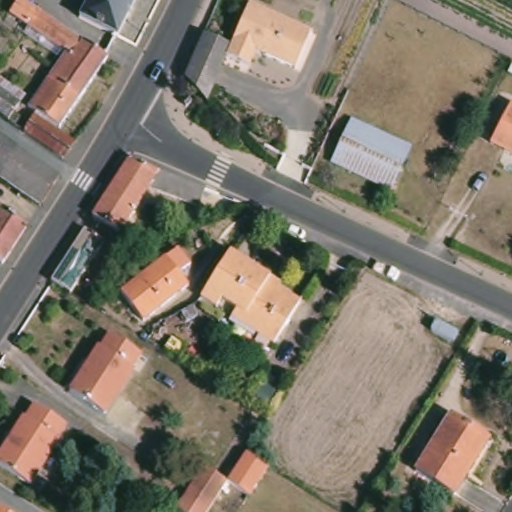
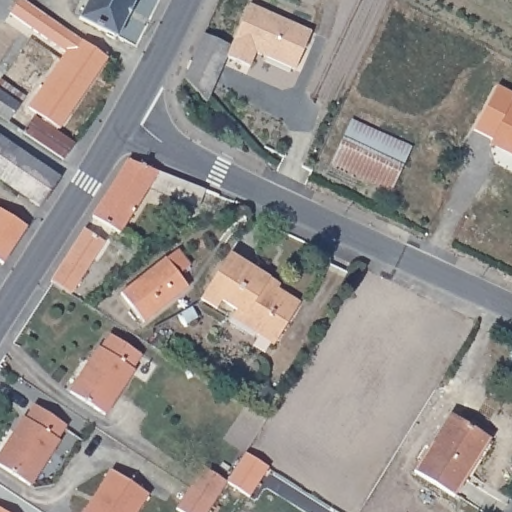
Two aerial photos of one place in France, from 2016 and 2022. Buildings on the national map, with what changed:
unchanged [(55,130),(24,108),(56,59),(19,34),(24,26),(6,13),(15,0),(16,0),(20,3),(103,59),(55,130)]
unchanged [(16,0),(22,0),(20,3),(16,0)]
unchanged [(75,20),(85,0),(134,0),(113,39),(75,20)]
unchanged [(254,52),(246,66),(229,58),(238,39),(251,5),(309,31),(294,69),(254,52)]
unchanged [(238,39),(212,96),(189,72),(210,27),(238,39)]
unchanged [(3,123),(0,121),(0,94),(15,105),(3,123)]
unchanged [(491,141),(510,104),(512,105),(512,153),(491,141)]
unchanged [(18,134),(29,118),(70,146),(59,162),(18,134)]
unchanged [(334,163),(351,123),(407,150),(389,189),(334,163)]
unchanged [(40,213),(0,185),(0,142),(59,184),(40,213)]
unchanged [(123,164),(200,195),(192,214),(142,195),(115,238),(86,221),(123,164)]
unchanged [(0,260),(0,215),(21,229),(0,260)]
unchanged [(45,281),(78,229),(100,243),(67,295),(47,283),(45,281)]
unchanged [(179,280),(188,293),(142,329),(119,298),(164,262),(165,263),(178,254),(191,271),(179,280)]
unchanged [(268,345),(252,335),(250,339),(225,323),(231,311),(216,301),(211,310),(195,300),(225,254),(264,279),(275,286),(273,290),(294,304),(268,345)]
unchanged [(130,368),(134,370),(105,415),(67,392),(96,347),(99,349),(108,334),(139,354),(130,368)]
unchanged [(59,440),(30,486),(0,466),(0,451),(22,417),(25,419),(33,406),(64,426),(57,439),(59,440)]
unchanged [(450,497),(410,472),(444,417),(484,441),(450,497)]
unchanged [(181,502),(195,482),(209,461),(233,476),(251,447),(272,461),(253,491),(232,477),(219,498),(209,512),(196,512),(181,502)]
new [(110,470),(148,495),(137,512),(83,512),(110,470)]

